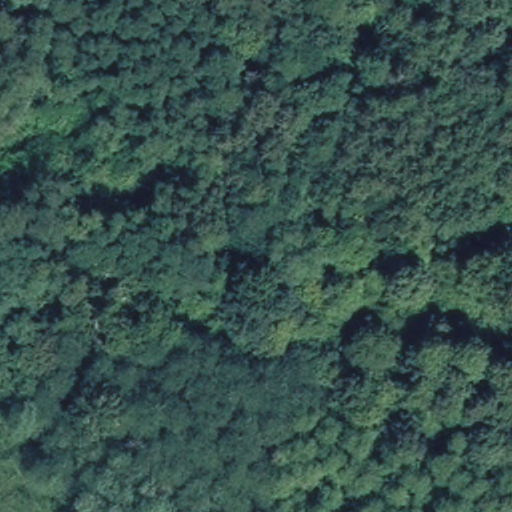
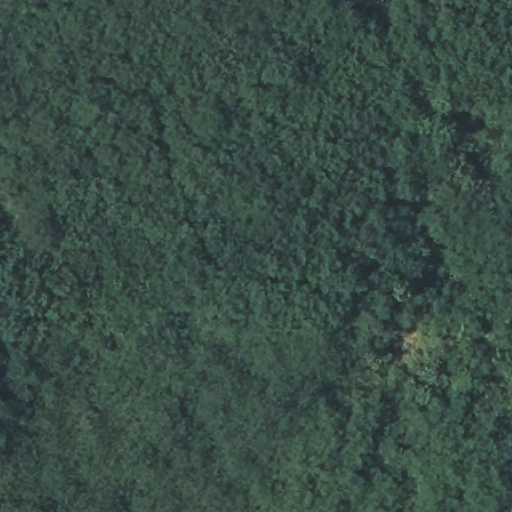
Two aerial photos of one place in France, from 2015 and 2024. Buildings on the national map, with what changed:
[]

